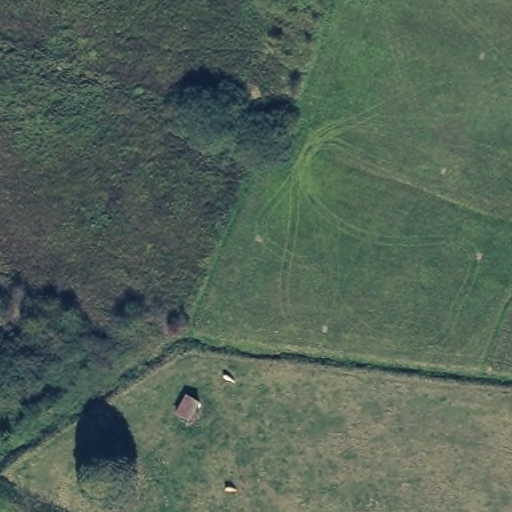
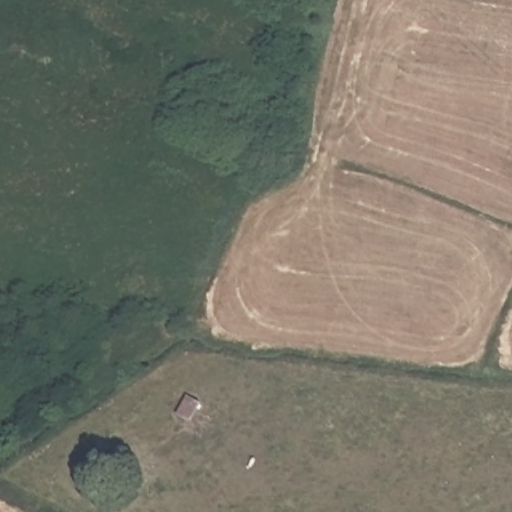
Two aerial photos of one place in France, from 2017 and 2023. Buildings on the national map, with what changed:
unchanged [(185,398),(201,404),(189,424),(174,416),(185,398)]

